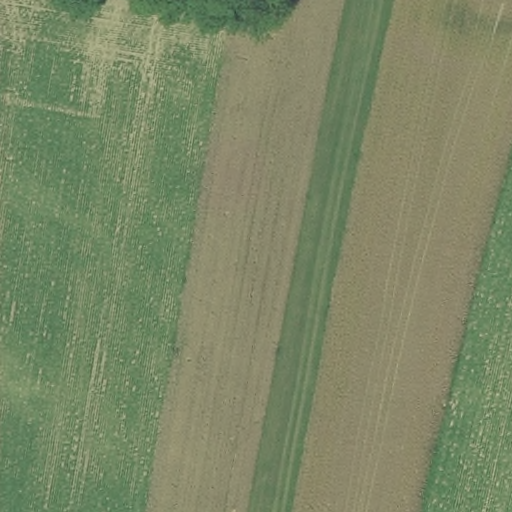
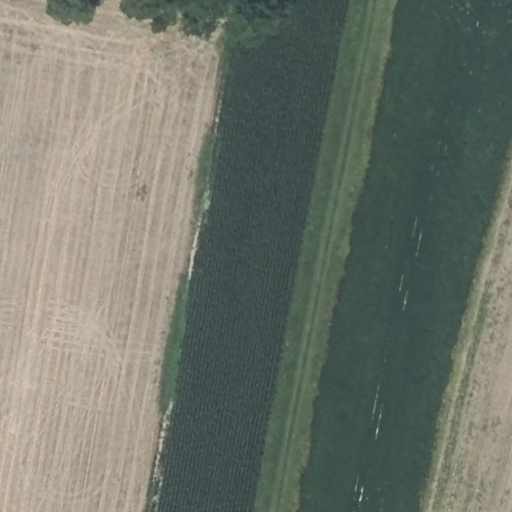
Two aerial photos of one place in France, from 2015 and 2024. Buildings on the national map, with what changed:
[]

